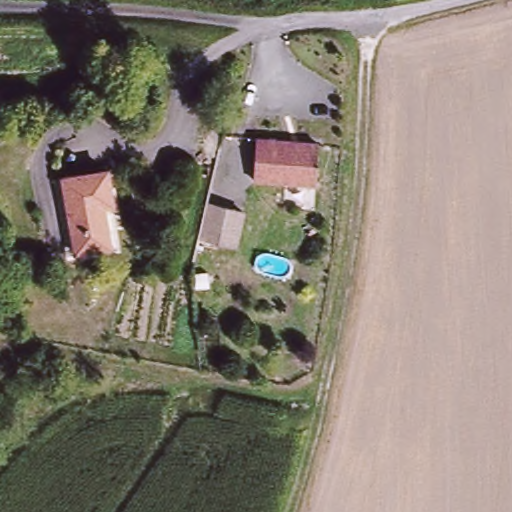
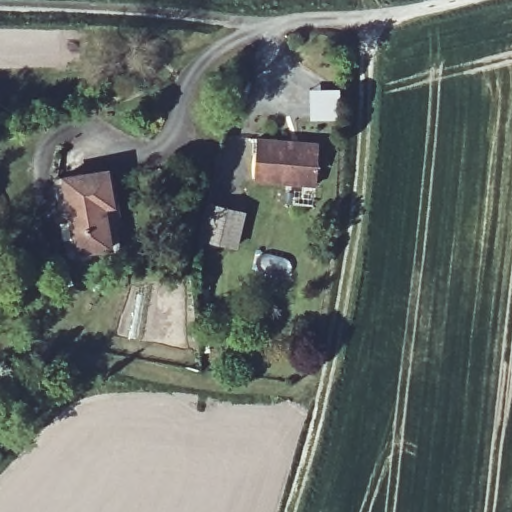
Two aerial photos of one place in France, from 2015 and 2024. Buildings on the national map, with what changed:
unchanged [(255,151),(317,155),(314,197),(252,193),(255,151)]
unchanged [(57,179),(112,171),(123,250),(67,257),(57,179)]
unchanged [(245,224),(239,258),(203,252),(210,218),(245,224)]

